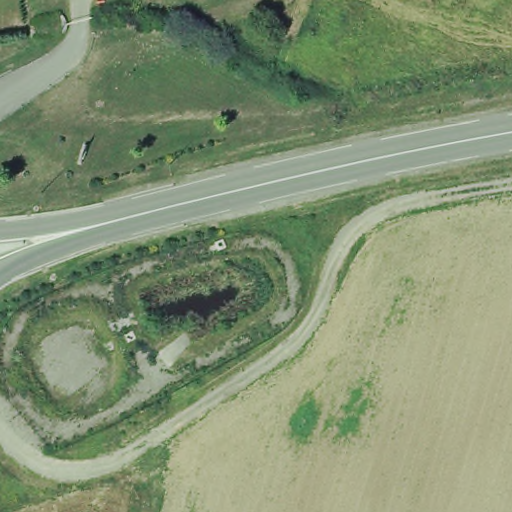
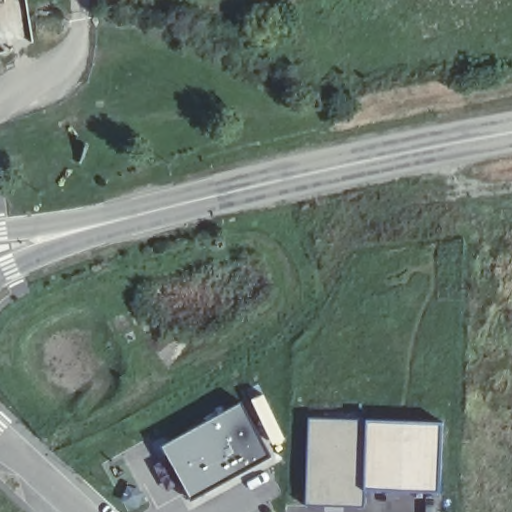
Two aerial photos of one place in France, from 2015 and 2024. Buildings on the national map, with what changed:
new [(0,2),(0,0),(5,0),(5,1),(0,2)]
new [(270,458),(190,499),(161,448),(240,404),(270,458)]
new [(308,417),(365,419),(364,488),(363,506),(305,504),(308,417)]
new [(365,419),(441,422),(438,491),(364,488),(365,419)]

